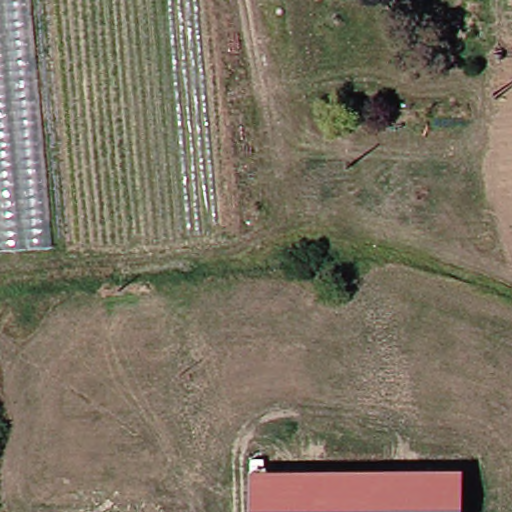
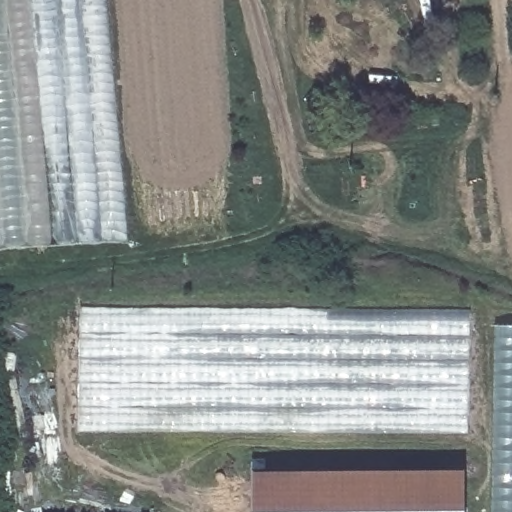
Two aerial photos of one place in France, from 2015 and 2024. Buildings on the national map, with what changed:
new [(0,251),(0,0),(30,0),(52,247),(0,251)]
new [(107,0),(129,240),(52,247),(30,0),(107,0)]
new [(82,308),(471,310),(467,433),(80,431),(82,308)]
new [(495,325),(512,325),(512,512),(492,512),(495,325)]
new [(464,512),(252,512),(252,471),(463,469),(464,512)]

